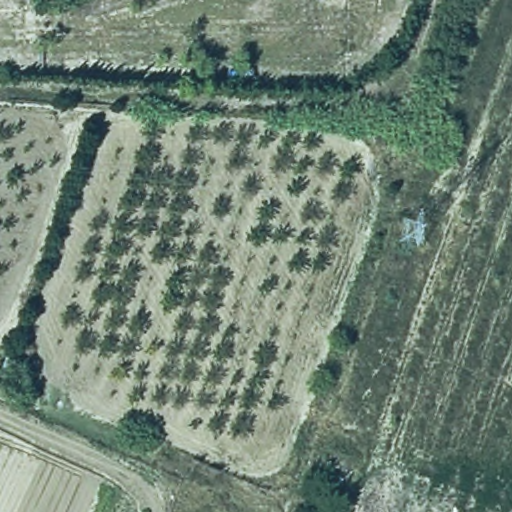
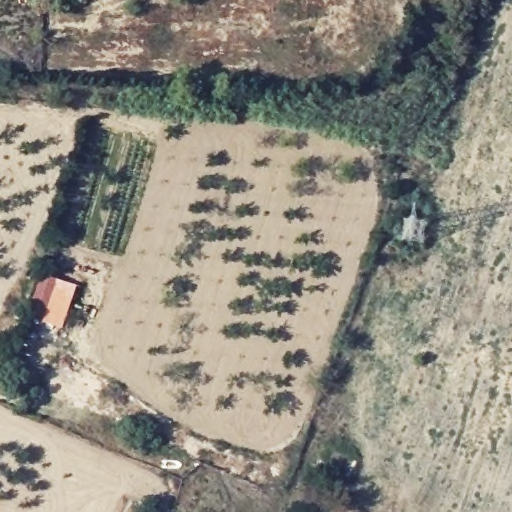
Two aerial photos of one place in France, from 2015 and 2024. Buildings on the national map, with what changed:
new [(60,329),(25,317),(40,275),(75,287),(60,329)]

